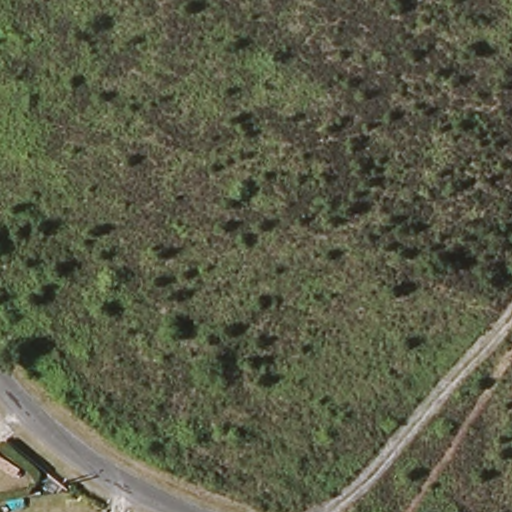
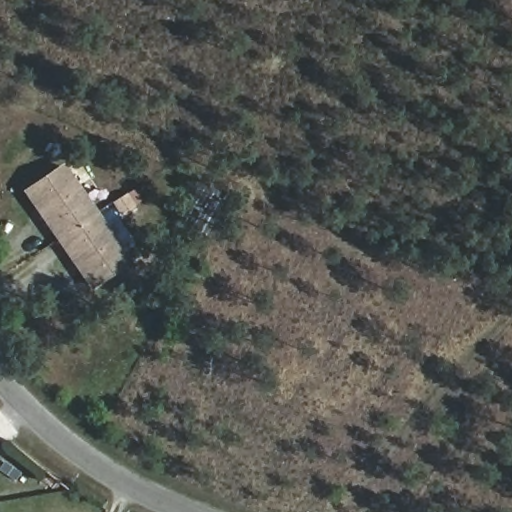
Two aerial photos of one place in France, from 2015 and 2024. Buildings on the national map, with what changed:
new [(88,290),(21,191),(63,162),(130,262),(88,290)]

